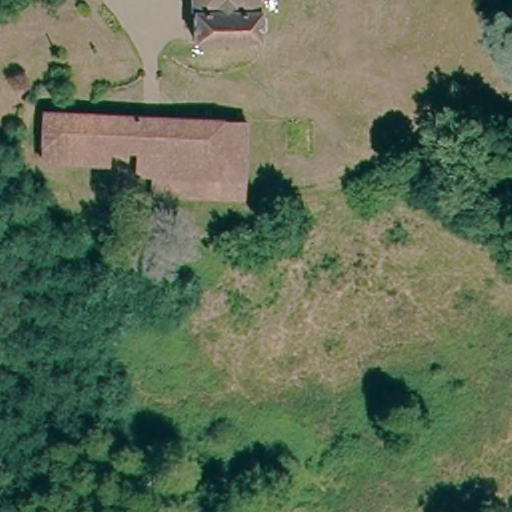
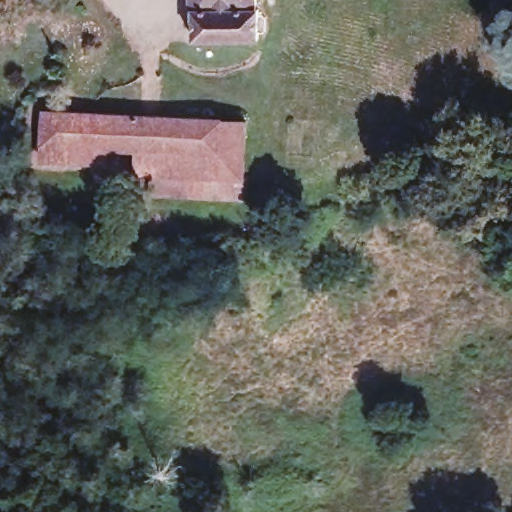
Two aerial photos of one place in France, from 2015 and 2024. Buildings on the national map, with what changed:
unchanged [(193,0),(261,0),(262,40),(196,43),(193,0)]
unchanged [(155,171),(100,169),(100,160),(44,159),(45,109),(247,120),(247,134),(246,173),(245,195),(193,194),(154,193),(155,171)]
unchanged [(102,206),(101,210),(97,229),(95,238),(30,224),(37,193),(102,206)]
unchanged [(164,224),(161,237),(141,238),(97,229),(101,210),(164,224)]

